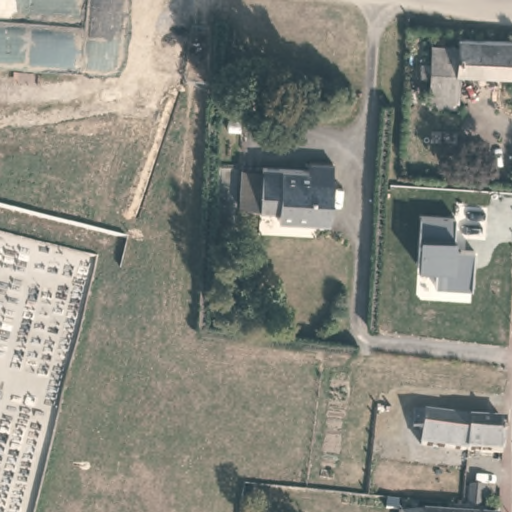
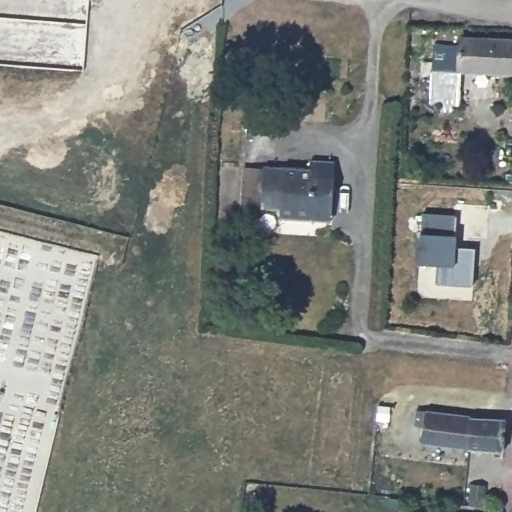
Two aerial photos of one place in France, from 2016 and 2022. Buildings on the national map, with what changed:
unchanged [(456,101),(431,100),(435,42),(461,44),(461,35),(512,39),(512,70),(458,67),(456,101)]
unchanged [(281,210),(240,207),(242,166),(313,166),(312,175),(337,175),(334,211),(315,210),(315,221),(280,220),(281,210)]
unchanged [(437,282),(440,263),(421,262),(424,231),(425,213),(456,214),(458,235),(457,245),(476,245),(472,285),(437,282)]
unchanged [(507,450),(466,446),(422,440),(422,430),(428,430),(428,421),(420,421),(421,406),(452,410),(475,413),(474,416),(510,418),(508,438),(507,450)]
unchanged [(468,502),(470,482),(483,483),(482,503),(468,502)]
unchanged [(400,510),(441,512),(400,512),(400,510)]

